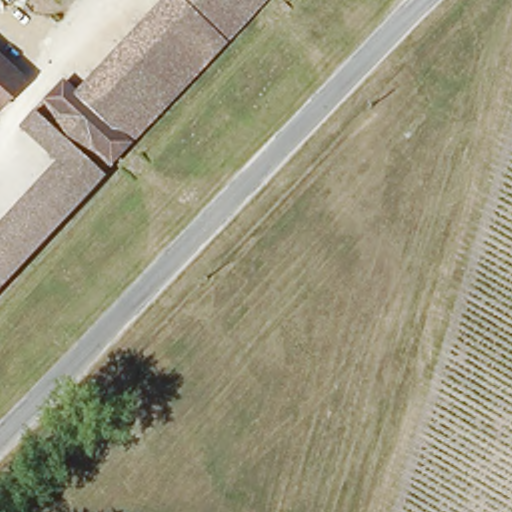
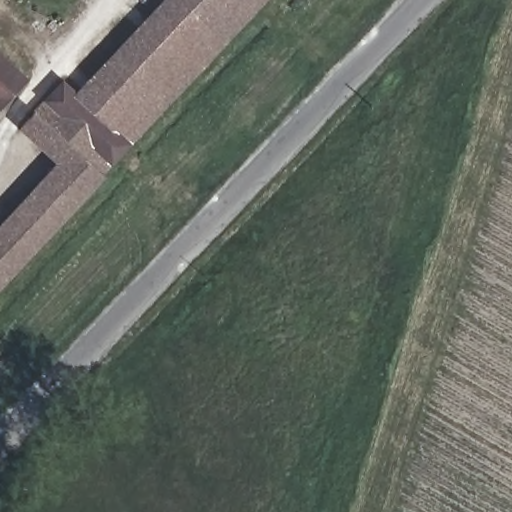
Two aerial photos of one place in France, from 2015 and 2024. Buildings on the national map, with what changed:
unchanged [(0,291),(0,225),(55,166),(20,134),(64,80),(77,92),(163,0),(272,0),(0,291)]
unchanged [(3,105),(0,103),(0,49),(30,76),(3,105)]

